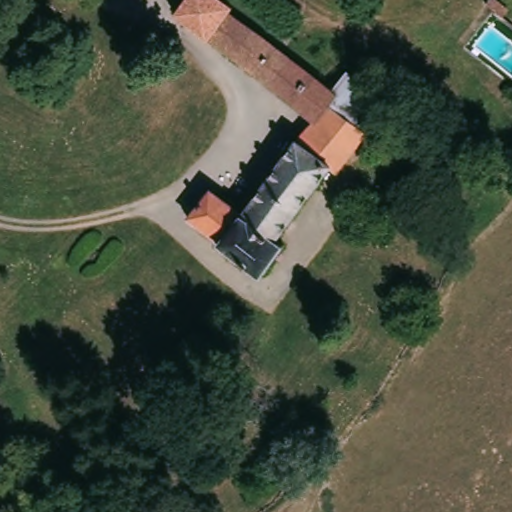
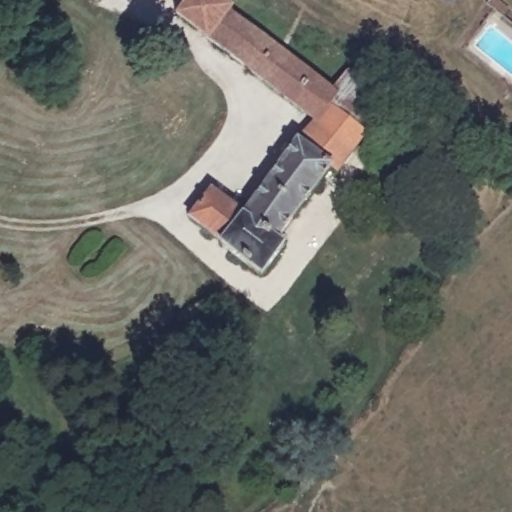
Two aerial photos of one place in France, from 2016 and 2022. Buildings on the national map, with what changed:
unchanged [(170,0),(211,0),(221,6),(217,12),(330,84),(341,66),(380,93),(359,122),(322,96),(310,114),(162,14),(170,0)]
unchanged [(322,96),(359,122),(368,129),(340,171),(332,166),(293,139),(296,134),(310,114),(322,96)]
unchanged [(222,246),(225,242),(192,220),(212,191),(244,212),(293,139),(332,166),(281,240),(288,245),(267,276),(222,246)]

